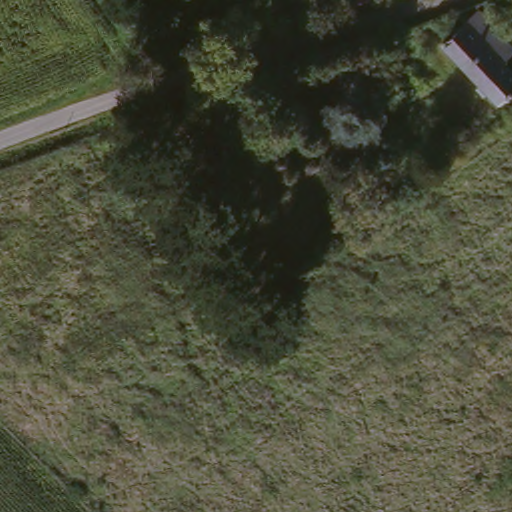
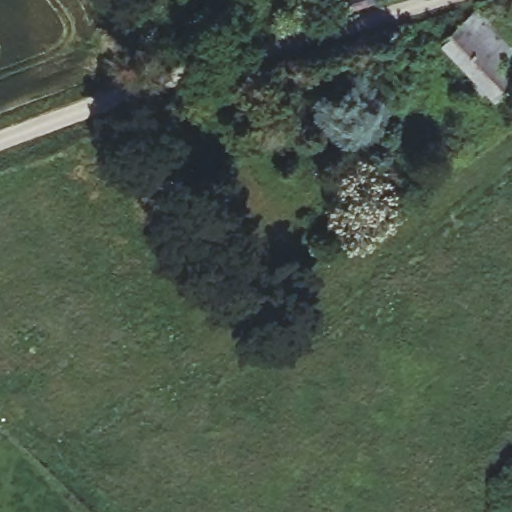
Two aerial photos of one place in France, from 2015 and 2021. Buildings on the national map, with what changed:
unchanged [(212,21),(210,0),(302,0),(303,8),(212,21)]
unchanged [(373,0),(373,1),(345,10),(343,0),(373,0)]
unchanged [(512,43),(512,49),(500,60),(457,15),(472,1),(512,43)]
unchanged [(512,72),(512,96),(501,104),(436,34),(457,15),(500,60),(512,72)]

